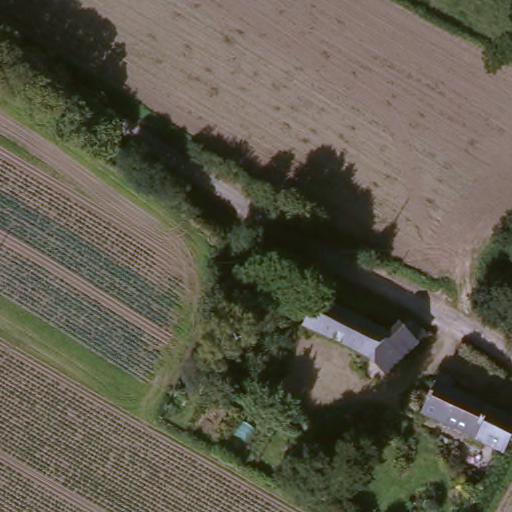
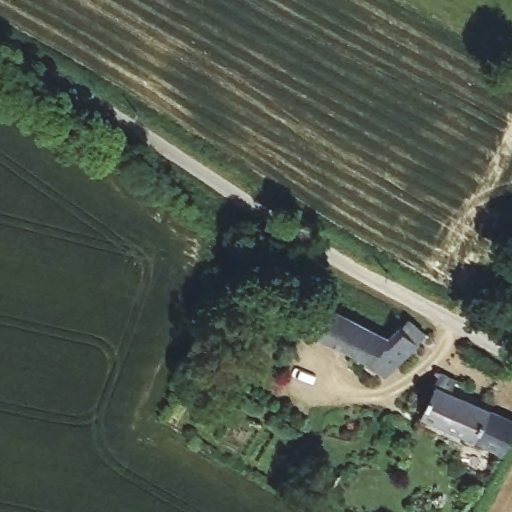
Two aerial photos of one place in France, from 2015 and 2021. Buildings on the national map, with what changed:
unchanged [(306,317),(321,285),(393,327),(403,321),(410,326),(419,320),(434,332),(389,375),(356,345),(306,317)]
unchanged [(509,456),(434,416),(447,384),(445,382),(449,374),(461,380),(456,390),(512,418),(512,452),(509,456)]

